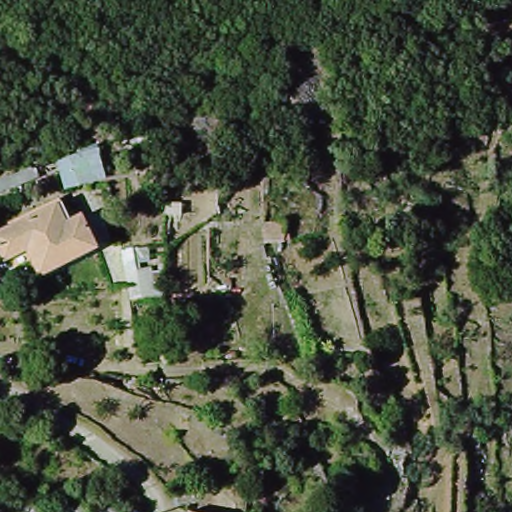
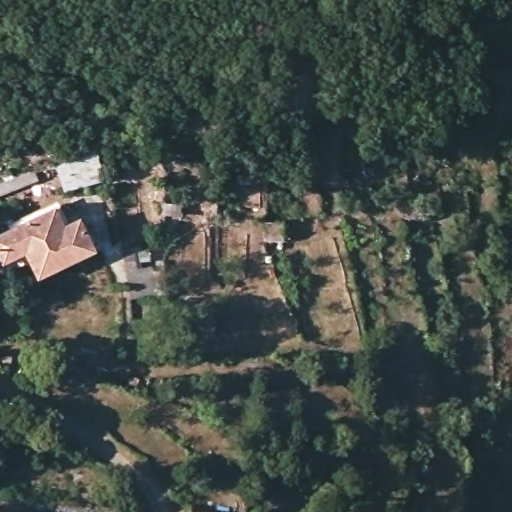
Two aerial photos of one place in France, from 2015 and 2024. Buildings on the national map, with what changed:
unchanged [(0,246),(0,236),(59,207),(65,220),(81,215),(98,249),(42,276),(37,263),(12,276),(7,259),(0,246)]

